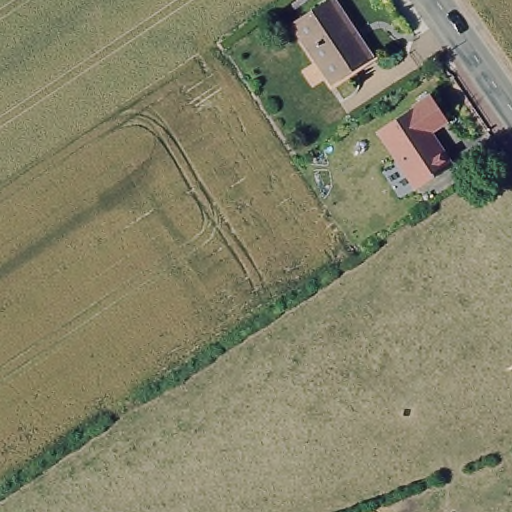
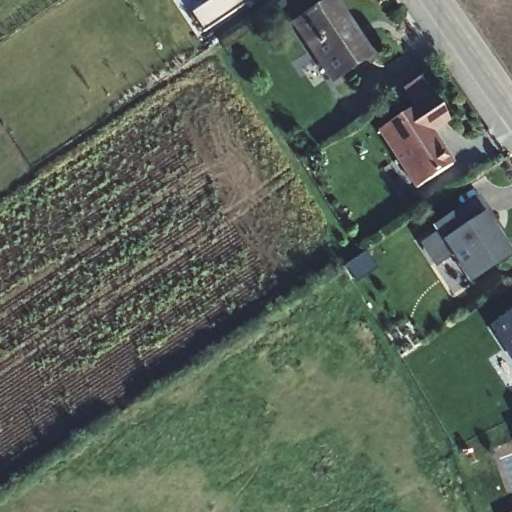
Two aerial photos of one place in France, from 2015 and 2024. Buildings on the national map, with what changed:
new [(190,14),(211,0),(251,0),(203,32),(190,14)]
unchanged [(337,76),(299,19),(328,0),(339,0),(374,52),(337,76)]
unchanged [(375,133),(427,97),(443,119),(426,132),(450,166),(415,190),(375,133)]
new [(487,210),(484,213),(512,256),(468,285),(450,258),(435,268),(419,244),(435,235),(429,227),(478,197),(487,210)]
new [(512,310),(512,363),(488,328),(512,310)]

